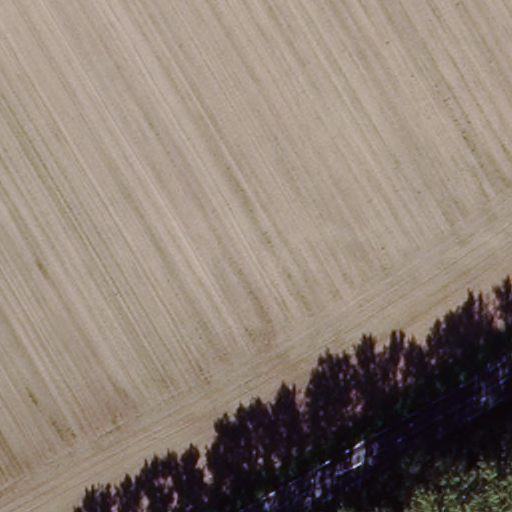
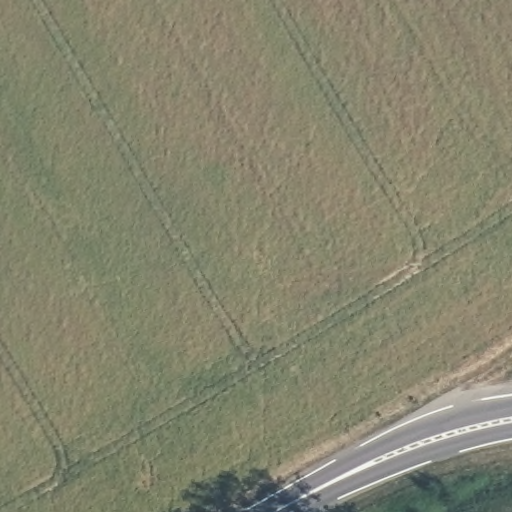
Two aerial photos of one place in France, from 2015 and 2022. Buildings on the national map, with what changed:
[]

